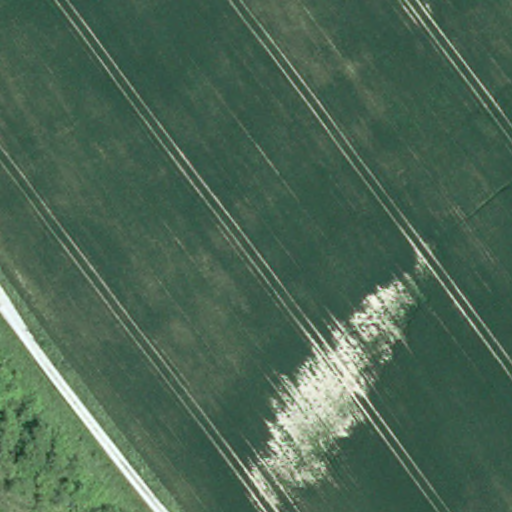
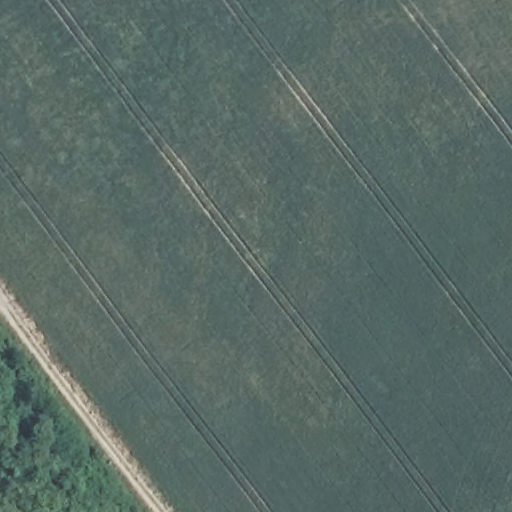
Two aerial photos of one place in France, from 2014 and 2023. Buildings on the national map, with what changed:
[]

